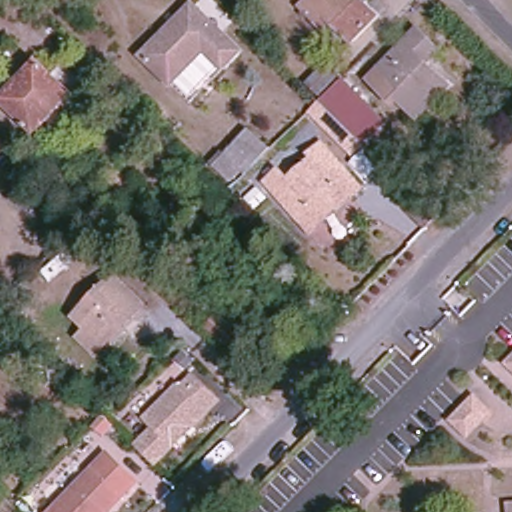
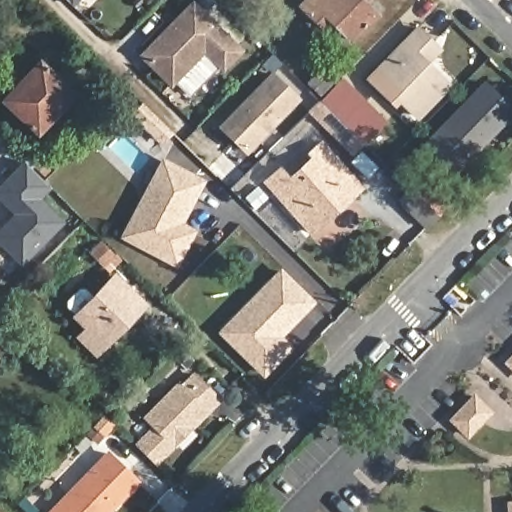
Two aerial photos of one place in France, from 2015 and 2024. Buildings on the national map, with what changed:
new [(61,0),(70,0),(65,5),(61,0)]
unchanged [(303,1),(304,0),(367,0),(380,12),(351,41),(335,25),(330,29),(321,21),(303,1)]
unchanged [(241,46),(225,64),(220,68),(206,55),(178,85),(145,53),(171,25),(194,1),(241,46)]
unchanged [(430,45),(435,50),(422,64),(435,76),(445,87),(415,118),(395,97),(400,91),(376,69),(385,59),(412,28),(430,45)]
unchanged [(68,89),(32,126),(4,99),(40,61),(68,89)]
unchanged [(342,76),(323,96),(310,84),(330,63),(342,76)]
new [(244,151),(219,127),(268,76),(293,100),(244,151)]
unchanged [(356,158),(316,118),(326,108),(322,104),(344,81),(387,125),(366,147),(356,158)]
new [(456,174),(423,143),(483,81),(512,110),(512,116),(456,174)]
demolished [(247,130),(261,144),(237,169),(222,156),(247,130)]
unchanged [(366,185),(355,196),(315,232),(270,182),(285,168),(294,178),(318,156),(315,153),(326,141),(347,165),(366,185)]
new [(223,178),(205,161),(216,151),(232,167),(223,178)]
new [(160,156),(204,180),(184,224),(195,229),(176,267),(118,237),(160,156)]
new [(0,247),(0,231),(14,217),(0,203),(0,185),(23,162),(47,186),(32,201),(55,223),(16,263),(0,247)]
unchanged [(249,192),(260,180),(271,190),(260,202),(249,192)]
unchanged [(411,205),(423,192),(433,181),(450,196),(438,207),(426,220),(411,205)]
new [(279,265),(315,302),(282,336),(291,345),(262,377),(215,331),(279,265)]
unchanged [(82,334),(90,326),(78,314),(117,274),(146,301),(120,328),(99,350),(82,334)]
unchanged [(512,355),(512,376),(500,366),(512,355)]
unchanged [(220,401),(155,466),(132,443),(155,418),(148,411),(177,379),(181,384),(191,373),(220,401)]
unchanged [(447,420),(473,393),(492,413),(465,440),(447,420)]
unchanged [(104,512),(49,512),(103,455),(132,482),(104,512)]
unchanged [(512,500),(512,512),(507,512),(507,501),(512,500)]

